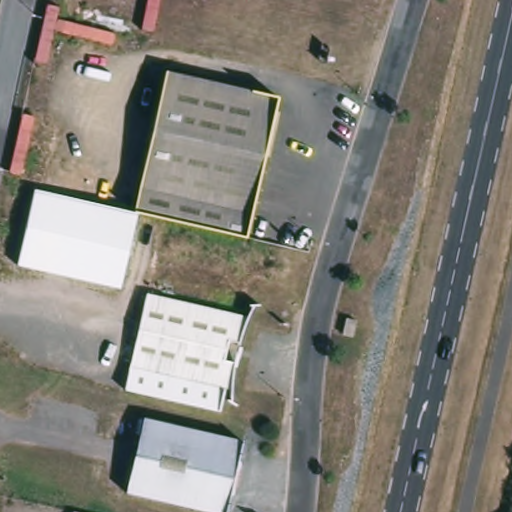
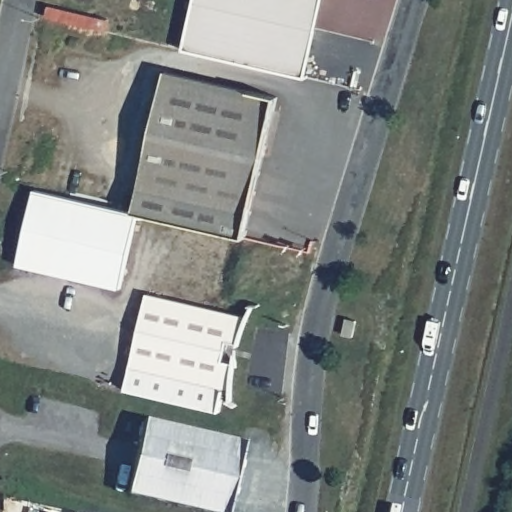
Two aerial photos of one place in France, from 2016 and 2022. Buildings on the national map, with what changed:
new [(196,0),(325,0),(311,64),(187,36),(196,0)]
unchanged [(136,211),(138,200),(168,70),(278,96),(249,225),(246,236),(136,211)]
unchanged [(18,266),(35,190),(135,214),(119,287),(18,266)]
unchanged [(248,307),(243,331),(234,329),(229,349),(238,351),(234,373),(227,404),(127,382),(134,351),(149,284),(248,307)]
unchanged [(348,323),(351,304),(361,306),(358,325),(348,323)]
unchanged [(240,443),(225,512),(200,512),(125,495),(142,420),(240,443)]

